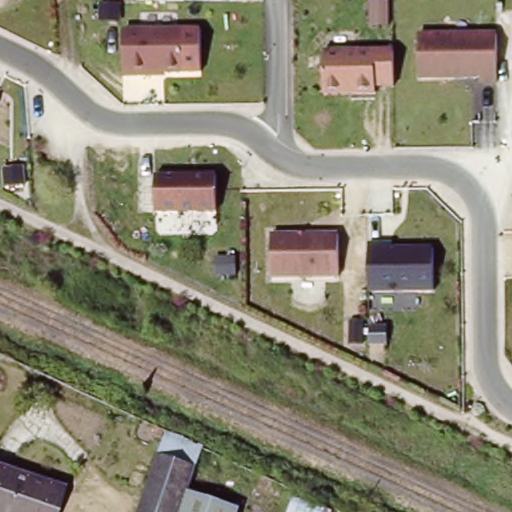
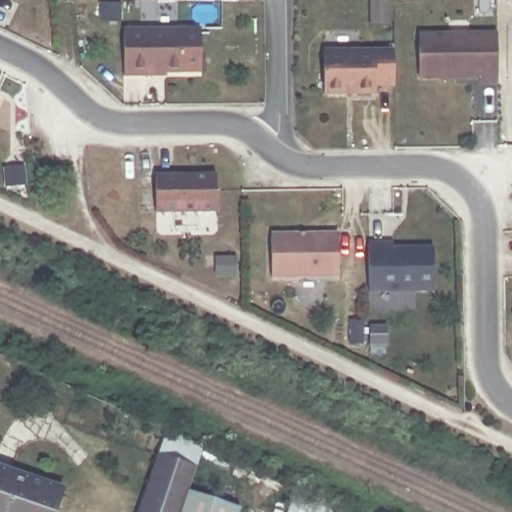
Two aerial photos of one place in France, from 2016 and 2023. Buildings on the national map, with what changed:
unchanged [(180,29),(180,69),(137,70),(137,74),(120,74),(120,30),(180,29)]
unchanged [(495,35),(495,84),(477,84),(477,79),(417,79),(417,36),(495,35)]
unchanged [(390,49),(391,84),(372,85),(372,93),(321,94),(320,51),(390,49)]
unchanged [(152,177),(211,175),(213,210),(155,214),(152,177)]
unchanged [(339,229),(340,273),(273,275),(271,233),(339,229)]
unchanged [(384,244),(384,248),(432,247),(432,290),(367,291),(367,244),(384,244)]
unchanged [(181,512),(135,512),(152,462),(160,440),(199,459),(192,477),(185,499),(181,512)]
unchanged [(66,486),(57,512),(0,512),(0,464),(66,486)]
unchanged [(185,499),(218,512),(181,512),(185,499)]
unchanged [(303,509),(307,499),(330,508),(329,512),(303,512),(303,509)]

